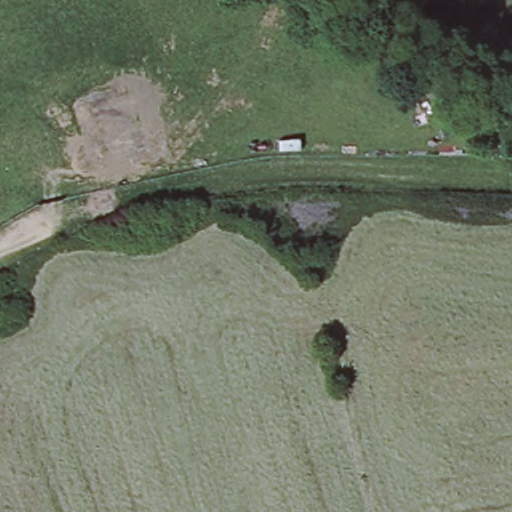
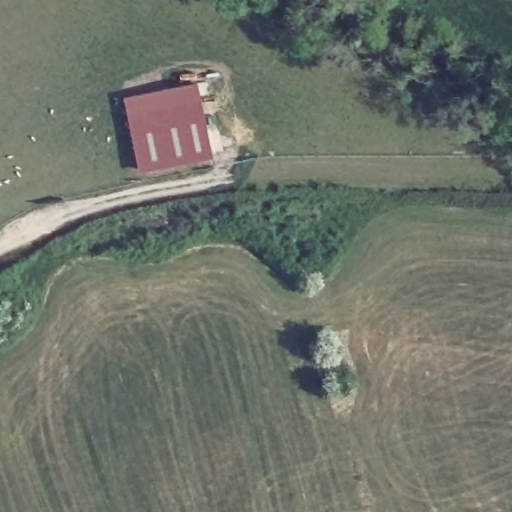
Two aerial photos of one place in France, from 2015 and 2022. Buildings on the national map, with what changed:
new [(123,97),(198,82),(213,156),(140,173),(123,97)]
demolished [(78,105),(112,96),(120,119),(130,116),(141,157),(95,170),(78,105)]

